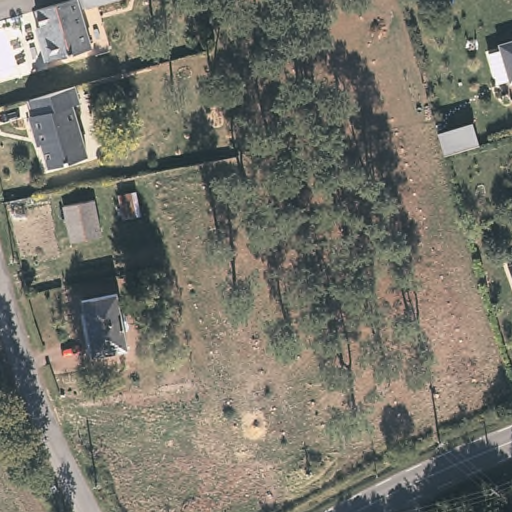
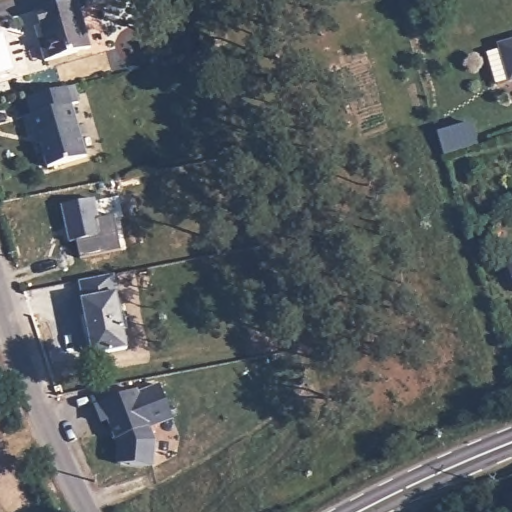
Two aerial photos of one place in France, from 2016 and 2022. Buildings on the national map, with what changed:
unchanged [(91,45),(45,57),(39,36),(45,34),(37,6),(63,0),(80,0),(91,45)]
unchanged [(89,3),(88,0),(99,0),(89,3)]
unchanged [(512,39),(512,93),(499,43),(512,39)]
unchanged [(79,108),(74,109),(88,161),(50,171),(41,134),(32,136),(27,119),(33,117),(29,100),(74,87),(79,108)]
new [(472,123),(479,144),(444,155),(438,133),(472,123)]
unchanged [(101,231),(69,239),(60,205),(91,197),(101,231)]
unchanged [(127,348),(95,354),(84,300),(116,293),(127,348)]
new [(132,388),(133,391),(155,382),(169,415),(146,424),(151,438),(150,463),(115,461),(116,444),(105,417),(98,420),(92,404),(132,388)]

